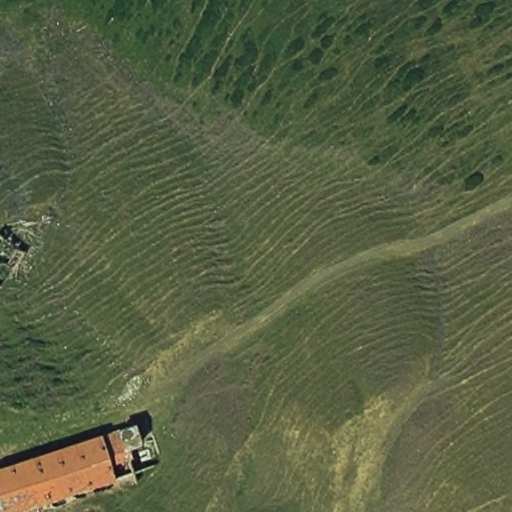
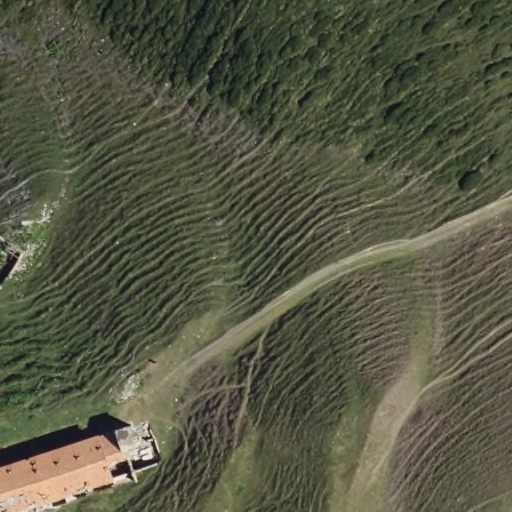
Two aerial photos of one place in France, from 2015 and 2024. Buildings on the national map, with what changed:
unchanged [(134,421),(148,442),(110,456),(118,479),(19,512),(0,512),(0,465),(134,421)]

